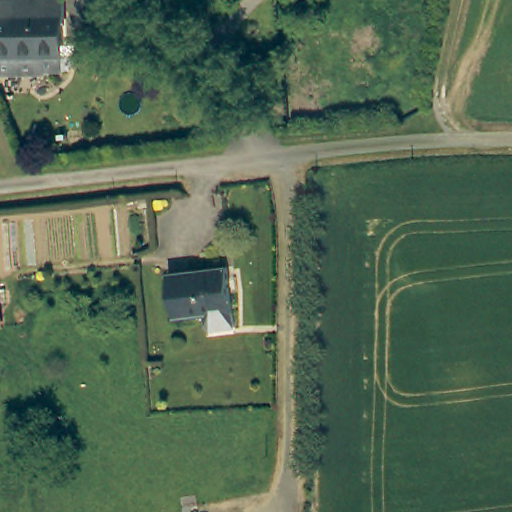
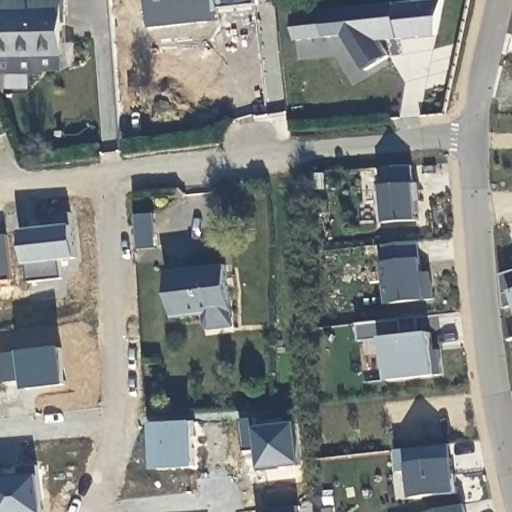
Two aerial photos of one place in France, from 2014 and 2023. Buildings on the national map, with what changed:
unchanged [(0,79),(0,0),(62,0),(63,59),(15,61),(15,79),(0,79)]
new [(436,36),(399,40),(380,43),(388,57),(366,71),(345,37),(328,38),(295,42),(292,16),(325,12),(395,5),(438,0),(442,0),(436,36)]
new [(414,184),(418,222),(385,223),(382,186),(380,169),(413,166),(414,184)]
new [(58,232),(56,219),(77,217),(82,262),(66,263),(67,282),(34,286),(28,235),(58,232)]
new [(16,273),(0,274),(0,229),(12,228),(16,273)]
new [(422,273),(430,273),(433,300),(385,305),(380,263),(385,262),(383,246),(418,242),(422,273)]
unchanged [(231,323),(208,326),(202,321),(201,308),(171,312),(166,267),(225,261),(230,305),(231,323)]
new [(501,276),(512,272),(512,306),(504,309),(501,276)]
new [(418,319),(424,334),(430,333),(435,375),(387,381),(381,339),(359,342),(357,325),(418,319)]
new [(30,377),(9,379),(5,352),(66,345),(70,382),(30,386),(30,377)]
new [(261,416),(262,427),(301,422),(305,464),(285,466),(285,464),(265,466),(263,449),(249,451),(245,418),(261,416)]
new [(199,423),(200,438),(197,438),(199,469),(155,470),(152,425),(199,423)]
new [(406,474),(398,474),(395,450),(450,445),(454,460),(458,494),(409,500),(406,474)]
new [(22,471),(22,475),(21,465),(40,462),(45,508),(0,512),(0,473),(12,472),(22,471)]
new [(302,512),(270,512),(270,508),(301,505),(302,512)]
new [(434,512),(464,506),(466,512),(434,512)]

